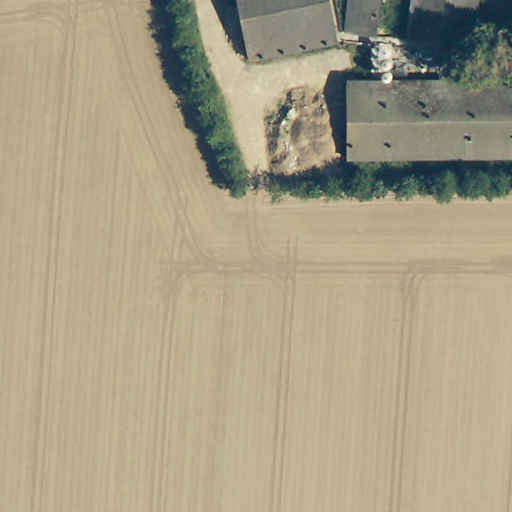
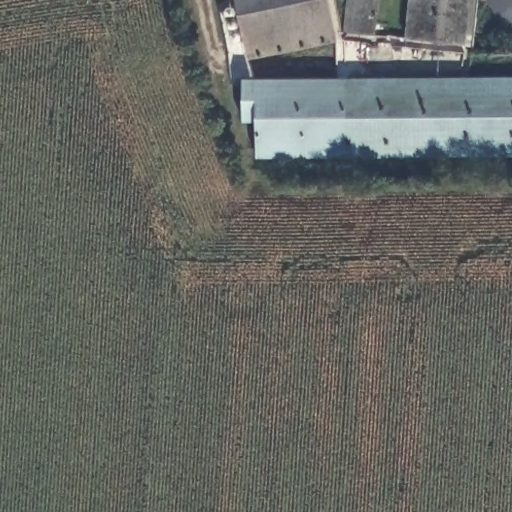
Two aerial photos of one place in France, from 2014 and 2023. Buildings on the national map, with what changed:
unchanged [(251,52),(241,0),(332,0),(338,36),(251,52)]
unchanged [(349,0),(379,0),(375,41),(346,38),(349,0)]
unchanged [(418,0),(473,0),(468,39),(415,33),(418,0)]
new [(257,152),(257,121),(241,122),(242,75),(352,74),(349,151),(257,152)]
unchanged [(512,75),(512,152),(349,151),(352,74),(512,75)]

